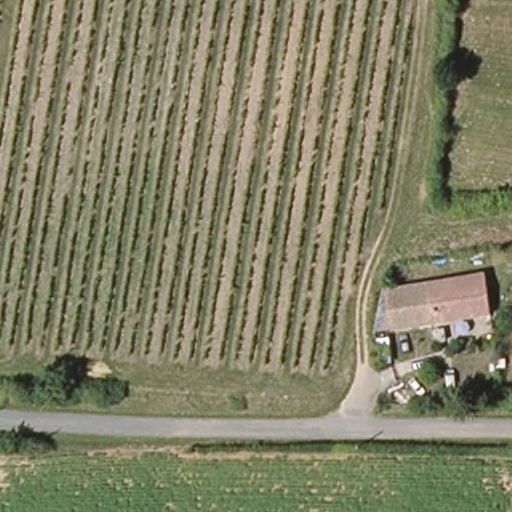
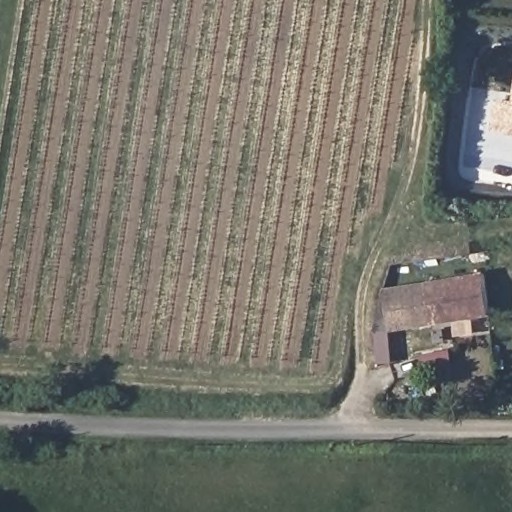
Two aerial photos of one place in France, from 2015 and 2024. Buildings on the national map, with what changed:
new [(489,131),(494,98),(512,101),(512,134),(489,131)]
unchanged [(478,275),(484,315),(389,331),(384,289),(478,275)]

